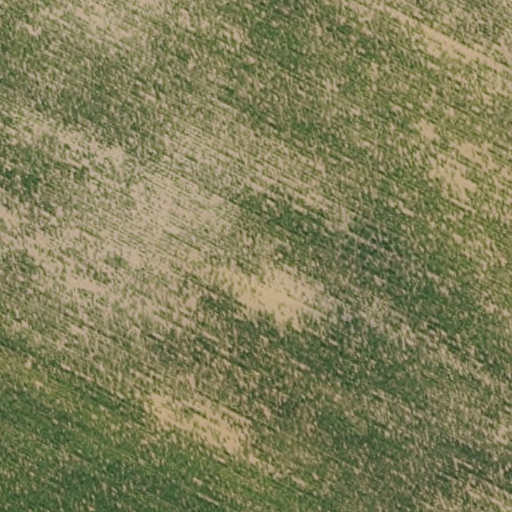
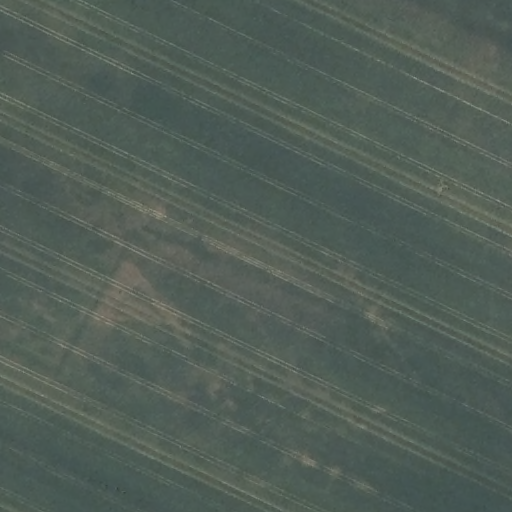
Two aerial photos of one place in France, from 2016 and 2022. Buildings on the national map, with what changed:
[]

